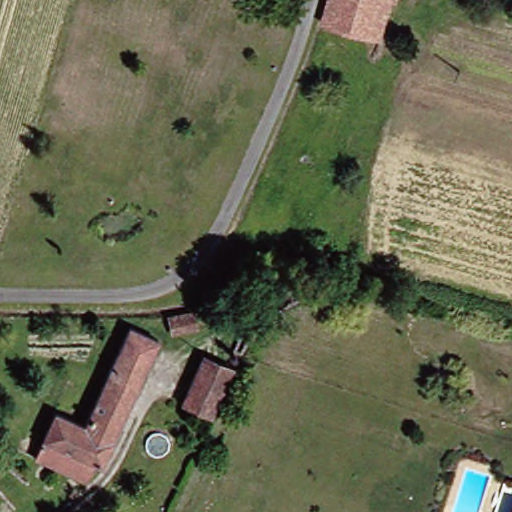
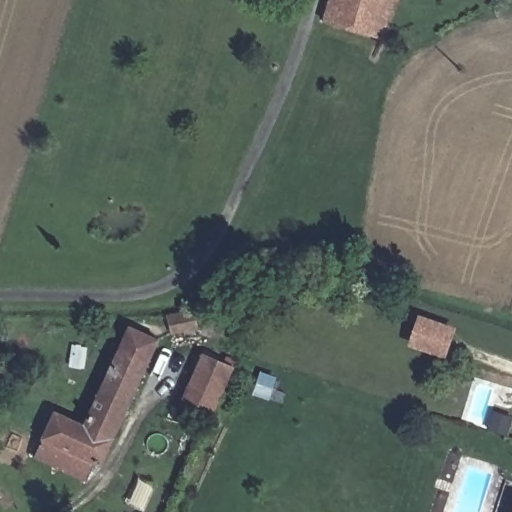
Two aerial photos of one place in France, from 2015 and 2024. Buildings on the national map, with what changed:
unchanged [(407,0),(395,40),(337,20),(343,0),(407,0)]
new [(446,361),(409,348),(419,317),(457,329),(446,361)]
unchanged [(197,335),(187,335),(172,336),(172,318),(197,318),(197,335)]
unchanged [(172,339),(110,463),(80,449),(52,435),(65,410),(94,422),(140,324),(172,339)]
unchanged [(210,419),(182,405),(205,358),(234,372),(210,419)]

